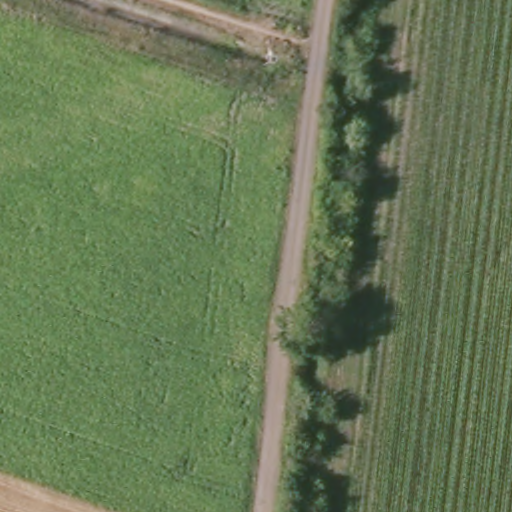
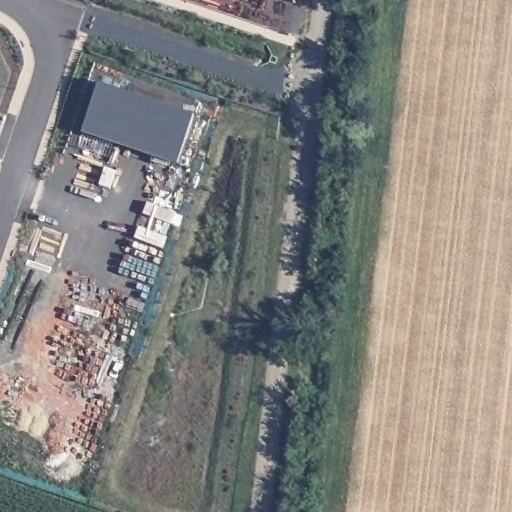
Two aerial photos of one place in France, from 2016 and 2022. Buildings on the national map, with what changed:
new [(83,131),(100,84),(193,116),(177,162),(83,131)]

